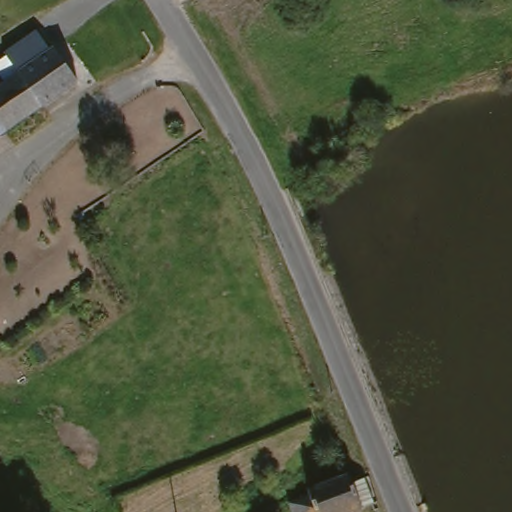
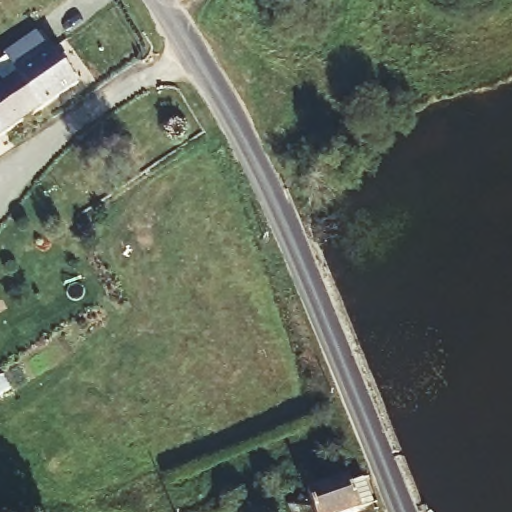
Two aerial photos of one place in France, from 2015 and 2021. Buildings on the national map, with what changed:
unchanged [(0,85),(0,73),(11,65),(8,60),(43,37),(55,56),(57,55),(79,91),(0,138),(0,90),(3,88),(0,85)]
unchanged [(319,490),(318,486),(353,475),(366,509),(358,512),(293,512),(289,501),(319,490)]

